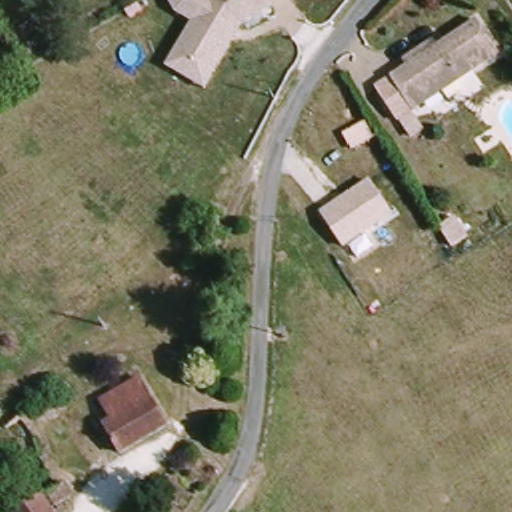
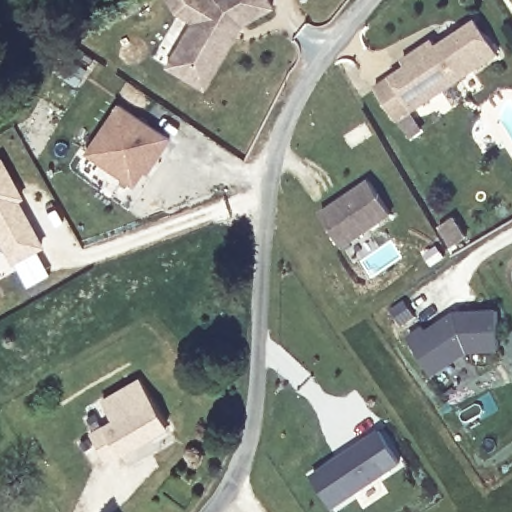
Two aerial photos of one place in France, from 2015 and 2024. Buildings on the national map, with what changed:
unchanged [(191,22),(176,12),(169,0),(272,0),(275,7),(242,26),(207,90),(165,67),(191,22)]
unchanged [(418,134),(408,117),(388,83),(419,65),(415,59),(432,49),(446,41),(449,47),(492,21),(512,53),(512,56),(417,112),(427,129),(418,134)]
new [(149,173),(145,172),(136,186),(84,152),(118,103),(171,138),(149,173)]
new [(13,180),(21,194),(17,197),(42,242),(14,257),(0,233),(0,158),(1,157),(13,180)]
unchanged [(393,214),(344,247),(321,212),(368,179),(393,214)]
new [(469,353),(435,376),(407,337),(424,326),(427,330),(451,312),(498,309),(500,351),(469,353)]
unchanged [(148,378),(174,423),(126,451),(110,427),(121,421),(110,401),(148,378)]
new [(380,428),(402,461),(335,505),(314,473),(380,428)]
demolished [(61,502),(67,512),(22,512),(21,511),(29,505),(61,502)]

